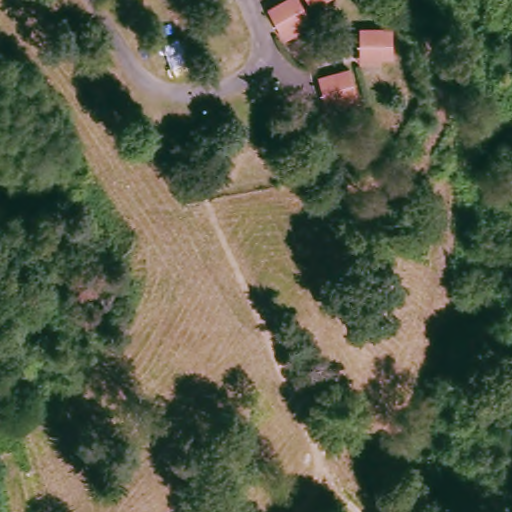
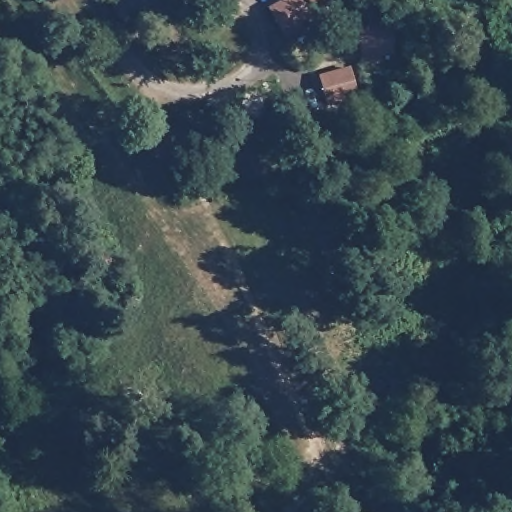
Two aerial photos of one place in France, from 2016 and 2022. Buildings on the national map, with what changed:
unchanged [(285,42),(280,32),(271,12),(297,0),(299,0),(310,24),(300,29),(302,34),(285,42)]
unchanged [(308,5),(306,0),(317,0),(308,5)]
unchanged [(322,6),(319,0),(333,0),(322,6)]
unchanged [(394,30),(393,61),(380,62),(379,66),(359,66),(357,29),(394,30)]
unchanged [(340,110),(338,104),(327,107),(318,82),(347,73),(354,93),(358,104),(340,110)]

